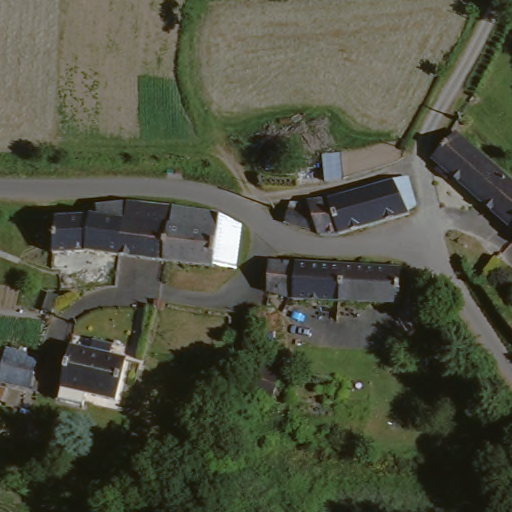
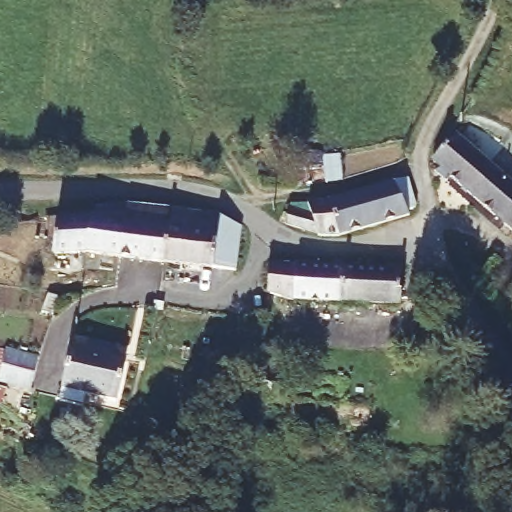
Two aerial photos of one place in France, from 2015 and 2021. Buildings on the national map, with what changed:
unchanged [(512,185),(512,236),(454,182),(450,185),(435,168),(435,166),(455,141),(457,139),(512,185)]
unchanged [(340,156),(345,180),(330,183),(324,160),(340,156)]
unchanged [(303,207),(332,205),(342,202),(403,182),(411,205),(404,218),(337,236),(311,239),(281,230),(286,215),(284,207),(303,207)]
unchanged [(96,222),(97,211),(128,207),(121,262),(121,263),(95,260),(53,261),(56,223),(96,222)]
unchanged [(121,263),(121,262),(128,207),(174,214),(167,267),(121,263)]
unchanged [(237,274),(167,267),(174,214),(219,221),(242,230),(237,274)]
unchanged [(399,269),(395,305),(290,299),(265,289),(267,262),(399,269)]
unchanged [(110,361),(126,366),(116,407),(85,400),(81,411),(59,405),(74,353),(93,357),(96,348),(113,352),(110,361)]
unchanged [(44,396),(0,384),(0,352),(51,365),(44,396)]
unchanged [(237,387),(234,382),(233,378),(234,374),(237,371),(240,370),(243,369),(246,368),(248,363),(277,375),(267,402),(238,392),(237,387)]

